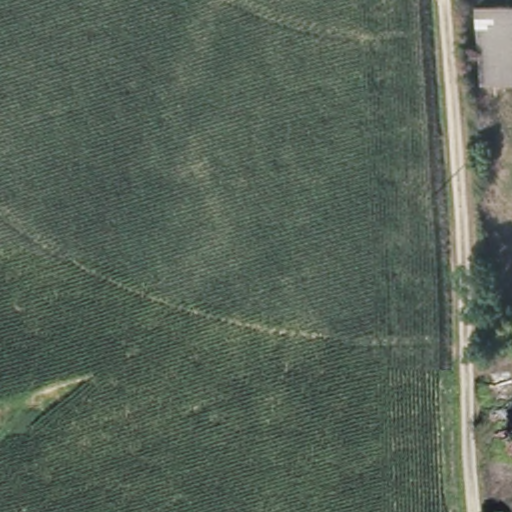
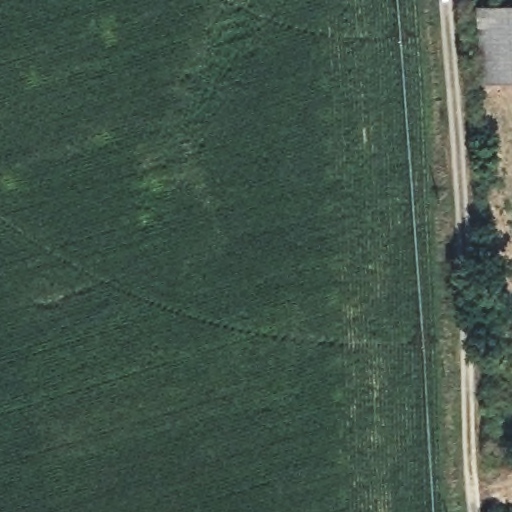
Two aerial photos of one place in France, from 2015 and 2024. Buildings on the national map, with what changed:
unchanged [(512,80),(481,84),(474,8),(512,5),(512,80)]

